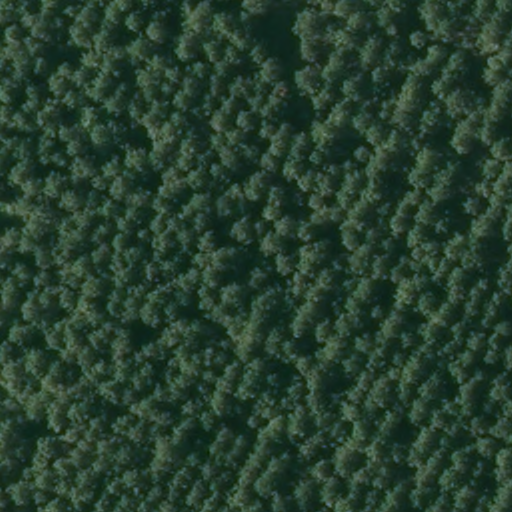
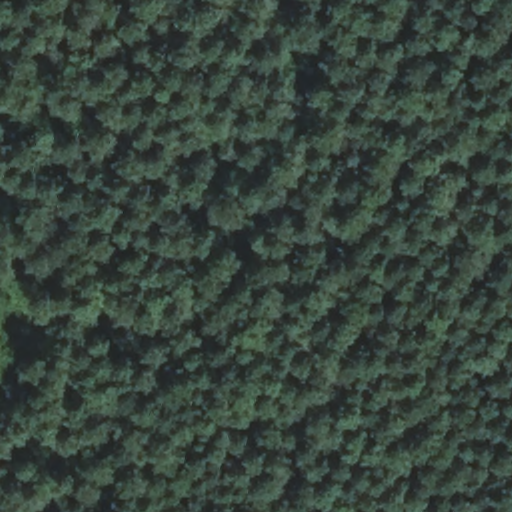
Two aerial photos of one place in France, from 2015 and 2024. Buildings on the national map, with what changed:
[]

